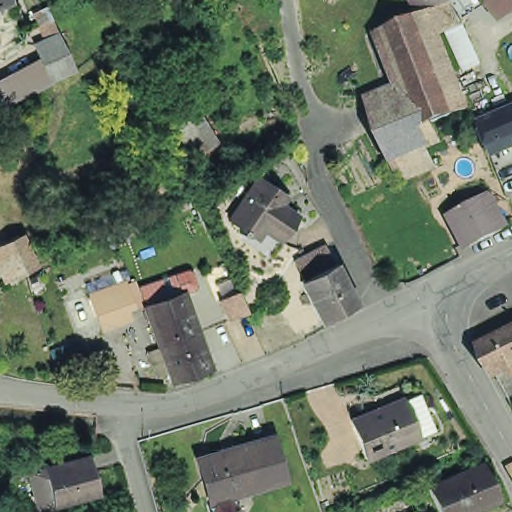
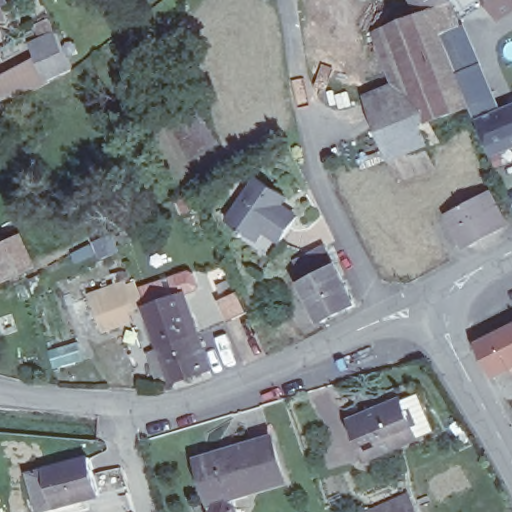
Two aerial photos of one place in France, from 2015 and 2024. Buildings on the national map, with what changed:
unchanged [(9,1),(0,4),(0,0),(9,0),(9,1)]
unchanged [(408,122),(388,85),(372,29),(413,15),(405,0),(450,0),(463,20),(445,31),(470,104),(437,120),(408,122)]
unchanged [(450,0),(486,0),(490,7),(463,20),(450,0)]
unchanged [(486,0),(512,0),(512,14),(500,24),(490,7),(486,0)]
unchanged [(35,41),(58,29),(75,65),(51,78),(37,85),(32,73),(46,66),(35,41)]
unchanged [(443,140),(430,146),(440,166),(395,183),(363,95),(388,85),(408,122),(437,120),(443,140)]
unchanged [(479,117),(512,103),(512,146),(493,154),(479,117)]
unchanged [(197,157),(178,124),(200,109),(219,143),(197,157)]
unchanged [(249,225),(245,232),(240,229),(242,225),(230,216),(257,174),(273,184),(274,183),(287,192),(282,200),(298,212),(282,237),(265,226),(262,233),(249,225)]
unchanged [(495,198),(510,225),(472,246),(457,218),(495,198)]
unchanged [(0,248),(0,246),(20,236),(35,267),(15,277),(0,248)]
unchanged [(305,284),(295,266),(325,250),(335,269),(355,310),(322,327),(301,286),(305,284)]
unchanged [(142,303),(145,312),(132,316),(133,323),(107,335),(90,295),(127,280),(129,284),(138,280),(148,301),(142,303)]
unchanged [(145,312),(142,303),(148,301),(187,285),(215,368),(168,384),(145,312)]
unchanged [(239,296),(248,315),(232,323),(222,303),(239,296)]
unchanged [(478,339),(512,322),(512,362),(495,371),(478,339)]
unchanged [(352,421),(402,399),(420,438),(370,459),(352,421)]
unchanged [(207,497),(195,456),(268,434),(280,476),(230,491),(235,512),(208,512),(205,501),(207,497)]
unchanged [(95,452),(105,489),(62,500),(47,504),(37,466),(52,463),(95,452)]
demolished [(471,512),(439,512),(428,489),(480,465),(497,501),(471,512)]
unchanged [(417,512),(413,512),(416,511),(417,512)]

